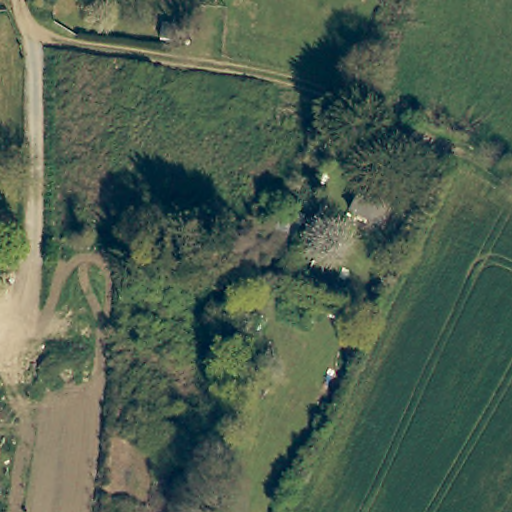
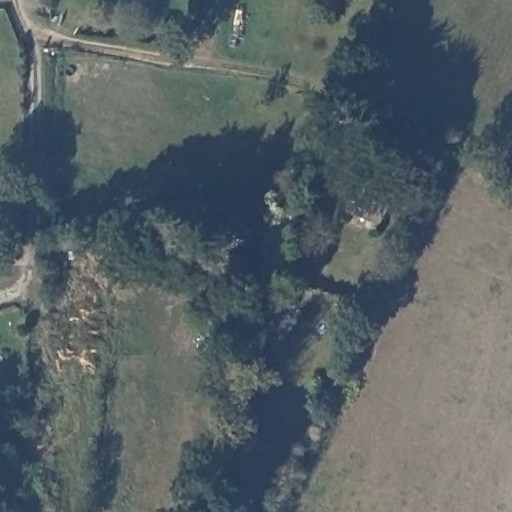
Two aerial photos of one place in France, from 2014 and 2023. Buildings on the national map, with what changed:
unchanged [(384,191),(379,199),(391,205),(379,226),(351,212),(365,183),(384,191)]
unchanged [(270,236),(294,191),(317,202),(289,245),(270,236)]

